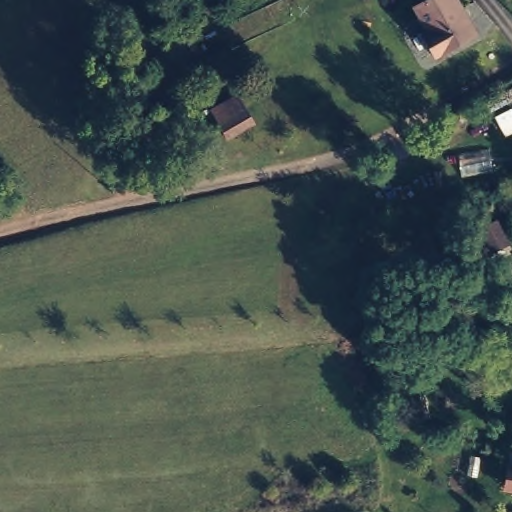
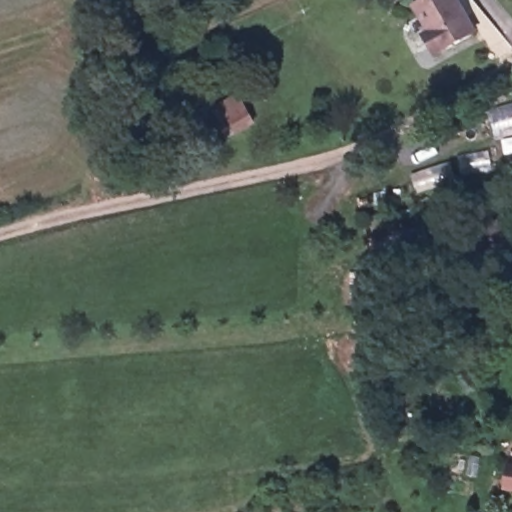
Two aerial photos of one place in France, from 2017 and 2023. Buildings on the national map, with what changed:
unchanged [(474,42),(437,62),(425,41),(428,40),(416,15),(442,0),(451,0),(474,42)]

